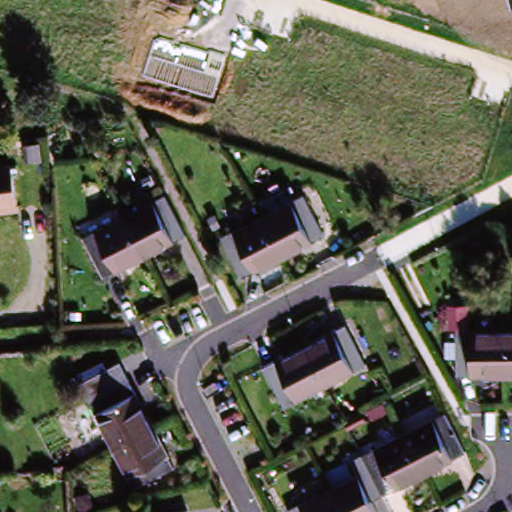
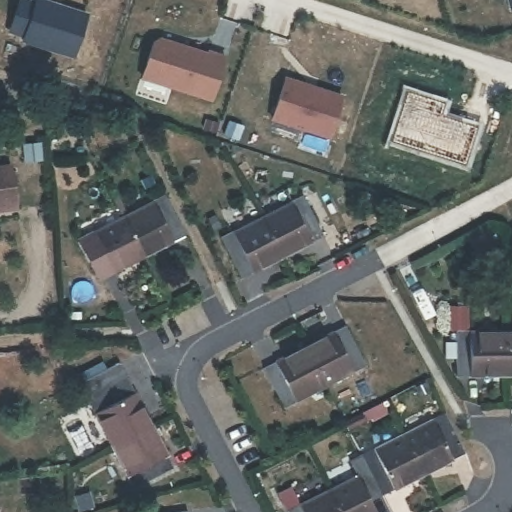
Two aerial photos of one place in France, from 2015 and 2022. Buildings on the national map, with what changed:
new [(34,0),(39,1),(39,0),(47,0),(89,15),(74,56),(25,38),(27,34),(12,29),(22,0),(34,0)]
unchanged [(512,0),(512,12),(511,12),(508,0),(512,0)]
new [(140,77),(152,39),(161,36),(226,56),(212,101),(140,77)]
new [(286,78),(342,99),(327,138),(271,118),(286,78)]
unchanged [(22,207),(0,209),(0,165),(16,163),(22,207)]
unchanged [(145,256),(125,217),(168,196),(186,235),(145,256)]
unchanged [(306,197),(325,234),(285,255),(266,218),(306,197)]
unchanged [(145,256),(104,277),(83,238),(125,217),(145,256)]
unchanged [(285,255),(244,277),(224,240),(266,218),(285,255)]
unchanged [(508,370),(460,371),(460,331),(508,329),(508,370)]
unchanged [(512,329),(512,370),(508,370),(508,329),(512,329)]
unchanged [(352,331),(372,366),(330,389),(311,352),(352,331)]
unchanged [(330,389),(287,412),(268,375),(311,352),(330,389)]
unchanged [(83,381),(122,360),(157,432),(119,450),(83,381)]
unchanged [(474,455),(432,478),(414,437),(454,416),(474,455)]
unchanged [(157,432),(180,474),(140,491),(119,450),(157,432)]
unchanged [(432,478),(390,500),(371,461),(414,437),(432,478)]
unchanged [(375,508),(377,512),(343,512),(336,498),(361,485),(356,469),(371,461),(390,500),(375,508)]
unchanged [(336,498),(343,512),(310,512),(336,498)]

